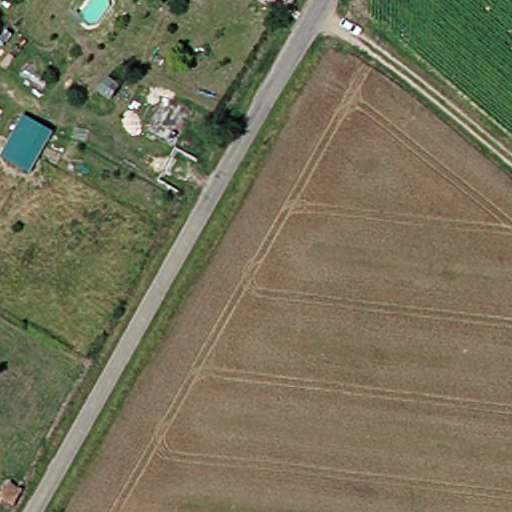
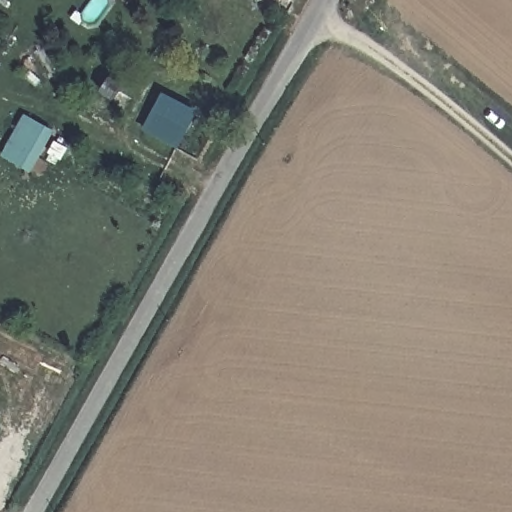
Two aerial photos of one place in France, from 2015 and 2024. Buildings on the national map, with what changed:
new [(141,131),(160,92),(197,110),(177,149),(141,131)]
unchanged [(54,135),(30,174),(0,156),(0,154),(21,117),(54,135)]

